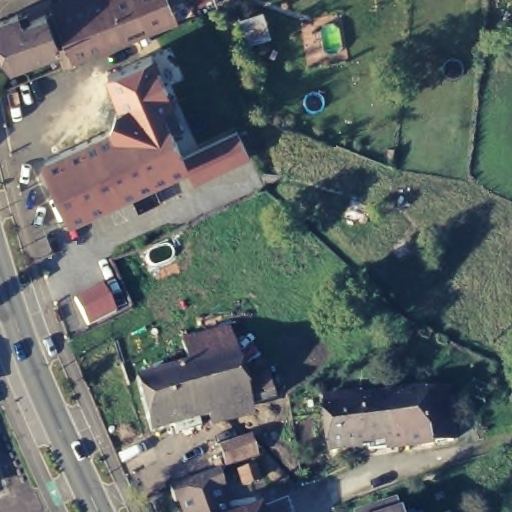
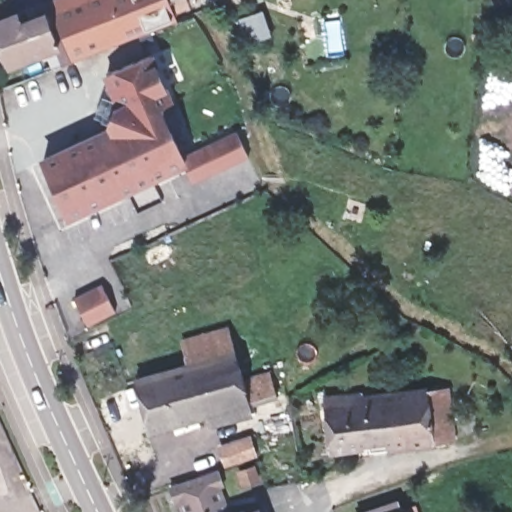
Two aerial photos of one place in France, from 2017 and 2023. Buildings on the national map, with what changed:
unchanged [(75,0),(158,0),(165,17),(66,60),(47,11),(75,0)]
unchanged [(165,17),(158,0),(212,0),(214,6),(165,17)]
unchanged [(57,67),(50,50),(3,66),(0,57),(0,21),(9,17),(10,21),(18,17),(20,22),(47,11),(66,60),(67,62),(57,67)]
unchanged [(38,157),(107,127),(117,106),(101,74),(151,52),(175,102),(163,107),(184,154),(235,130),(247,156),(192,183),(186,167),(70,222),(38,157)]
unchanged [(105,281),(120,309),(92,322),(80,296),(105,281)]
unchanged [(179,338),(223,325),(231,346),(184,360),(179,338)]
unchanged [(175,430),(172,423),(148,429),(133,377),(184,360),(231,346),(241,373),(265,367),(273,391),(195,417),(196,425),(175,430)]
unchanged [(384,446),(381,433),(350,437),(350,445),(320,449),(310,395),(345,389),(345,393),(432,385),(440,437),(384,446)]
unchanged [(252,436),(257,452),(227,462),(222,445),(252,436)]
unchanged [(255,467),(260,481),(247,485),(242,471),(255,467)]
unchanged [(182,498),(177,500),(173,488),(223,472),(226,483),(222,485),(230,512),(187,512),(182,498)]
unchanged [(357,510),(394,499),(398,512),(357,512),(357,510)]
unchanged [(261,509),(262,512),(250,512),(261,509)]

